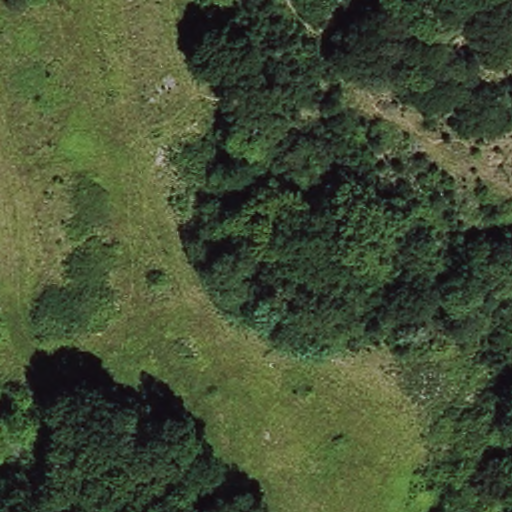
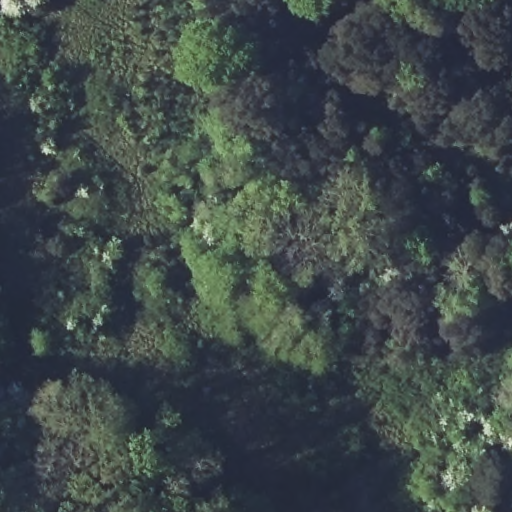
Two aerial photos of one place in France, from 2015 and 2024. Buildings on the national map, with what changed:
[]

